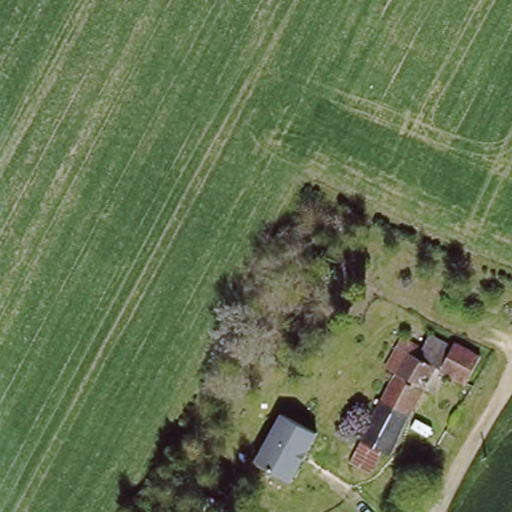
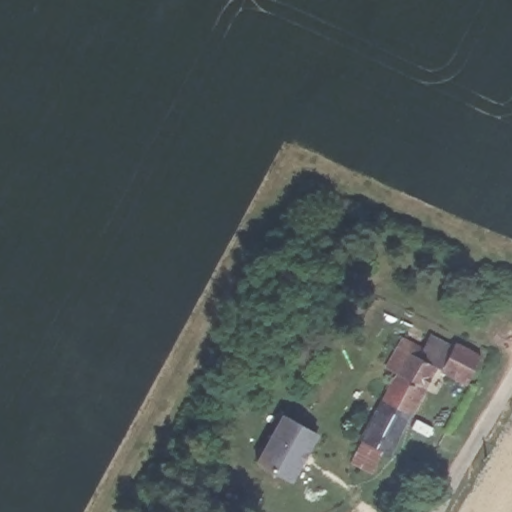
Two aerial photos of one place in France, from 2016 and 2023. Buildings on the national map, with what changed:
unchanged [(394,378),(379,372),(400,335),(420,350),(428,335),(451,347),(457,336),(489,352),(469,393),(439,377),(393,463),(384,456),(374,483),(346,470),(394,378)]
unchanged [(318,435),(291,484),(252,462),(279,413),(318,435)]
unchanged [(421,465),(413,480),(400,472),(408,458),(421,465)]

